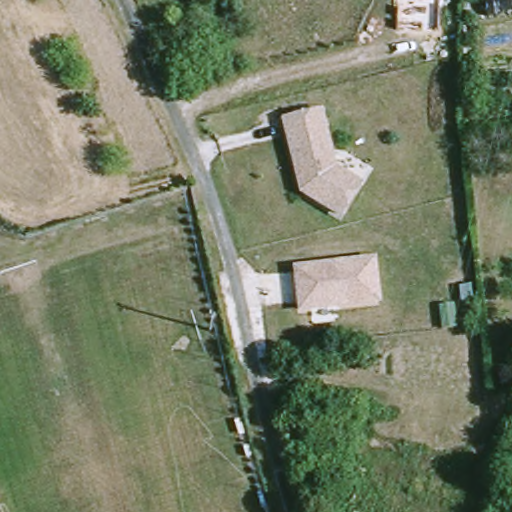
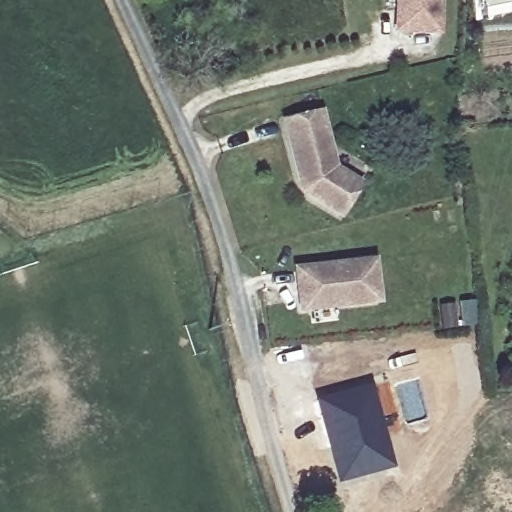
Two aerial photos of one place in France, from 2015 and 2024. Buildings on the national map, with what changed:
unchanged [(394,0),(442,0),(440,35),(394,33),(394,0)]
unchanged [(321,114),(335,170),(361,185),(342,217),(309,197),(313,190),(301,183),(285,123),(321,114)]
unchanged [(300,311),(294,266),(377,257),(383,303),(300,311)]
new [(484,324),(440,328),(438,304),(481,300),(484,324)]
new [(374,381),(383,416),(391,469),(336,483),(315,398),(374,381)]

